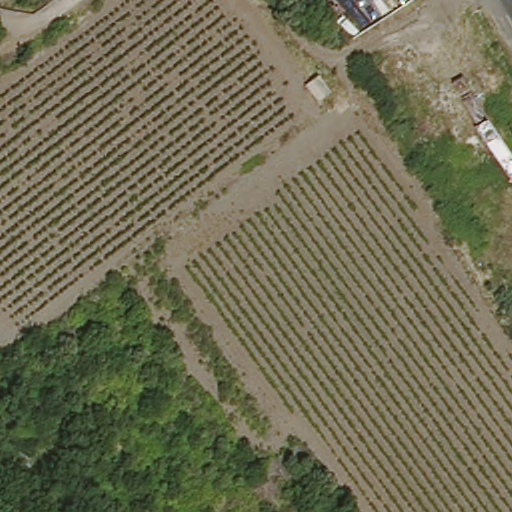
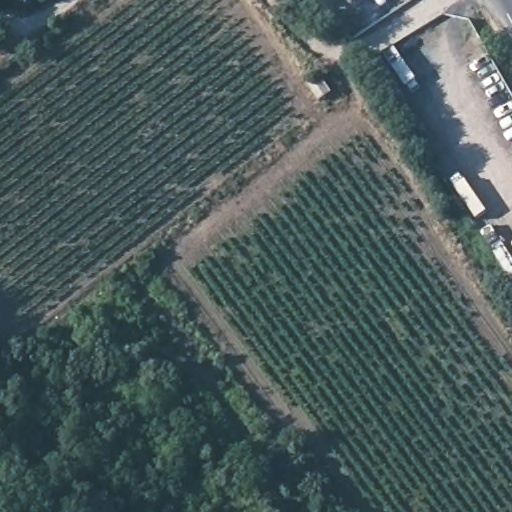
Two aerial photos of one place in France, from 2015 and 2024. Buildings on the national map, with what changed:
unchanged [(318,78),(330,94),(320,101),(307,85),(318,78)]

